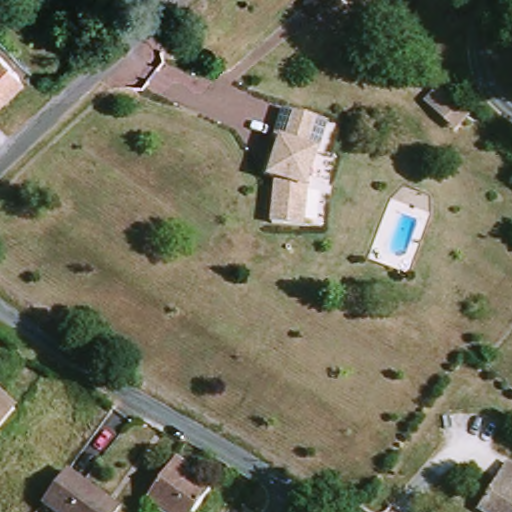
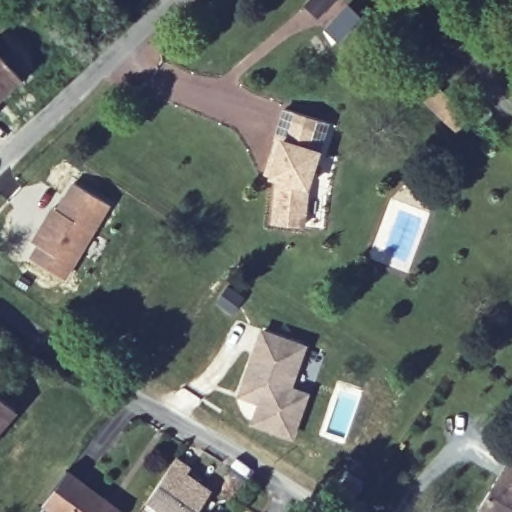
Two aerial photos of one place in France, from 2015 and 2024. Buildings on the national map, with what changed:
unchanged [(311,3),(314,0),(335,0),(322,14),(311,3)]
unchanged [(24,80),(0,101),(0,52),(24,80)]
unchanged [(456,130),(438,113),(427,102),(437,91),(448,102),(466,119),(456,130)]
unchanged [(307,225),(280,223),(282,178),(275,176),(270,175),(275,155),(281,156),(285,140),(279,139),(287,109),(327,119),(310,185),(307,225)]
new [(35,241),(47,220),(55,206),(59,210),(75,182),(110,202),(65,277),(32,257),(40,245),(35,241)]
new [(261,329),(302,344),(288,385),(309,393),(295,434),(252,420),(259,399),(239,391),(261,329)]
unchanged [(20,411),(0,432),(0,394),(20,411)]
unchanged [(149,503),(181,460),(192,467),(189,473),(214,490),(198,512),(161,512),(149,503)]
unchanged [(486,509),(512,465),(512,512),(491,512),(486,509)]
unchanged [(50,508),(75,476),(125,511),(124,512),(55,512),(50,508)]

